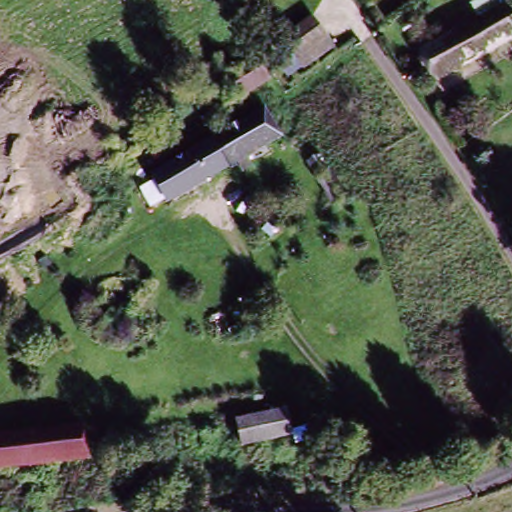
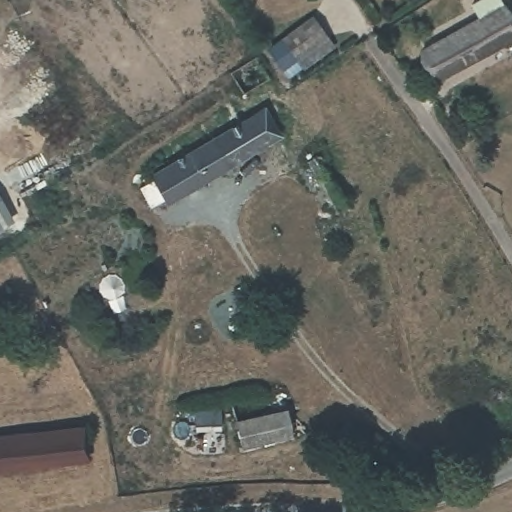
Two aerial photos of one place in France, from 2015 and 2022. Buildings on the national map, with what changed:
unchanged [(445,85),(428,60),(477,26),(469,14),(488,0),(492,0),(512,30),(512,40),(445,85)]
unchanged [(285,51),(315,32),(328,52),(298,71),(285,51)]
unchanged [(227,74),(251,59),(262,76),(239,91),(227,74)]
unchanged [(148,180),(264,111),(282,136),(166,209),(148,180)]
unchanged [(332,200),(318,177),(309,161),(321,155),(331,170),(345,193),(332,200)]
new [(0,230),(0,197),(14,221),(0,230)]
unchanged [(237,425),(278,415),(285,438),(242,448),(237,425)]
unchanged [(0,441),(67,430),(81,428),(85,455),(73,457),(0,469),(0,441)]

